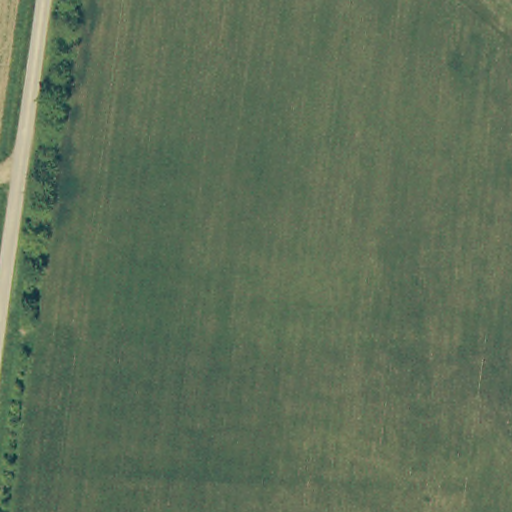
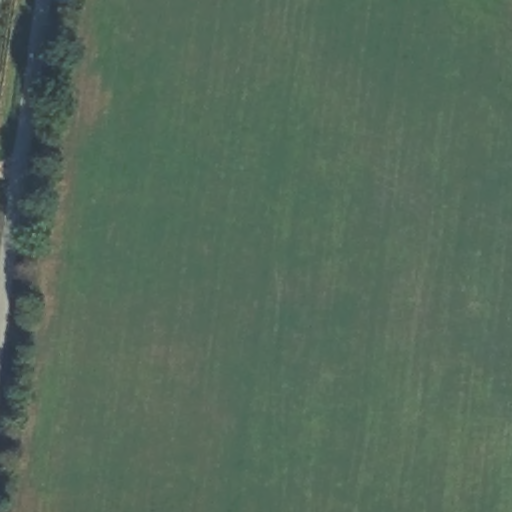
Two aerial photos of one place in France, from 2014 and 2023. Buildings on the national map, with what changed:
[]

